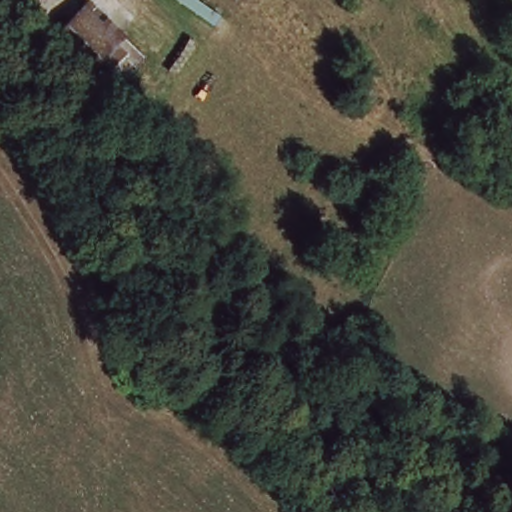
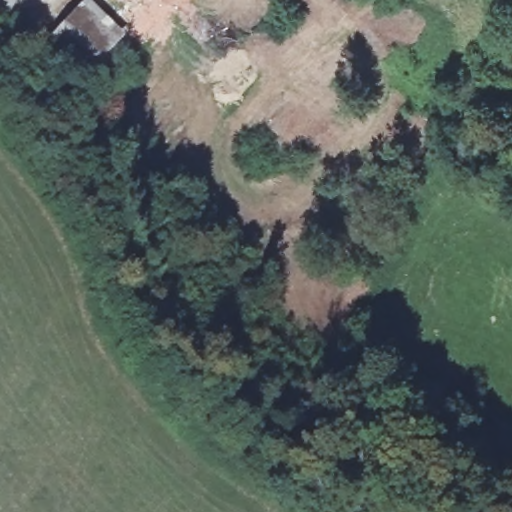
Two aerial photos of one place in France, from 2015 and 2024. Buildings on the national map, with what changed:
unchanged [(84,8),(121,41),(82,80),(47,46),(84,8)]

